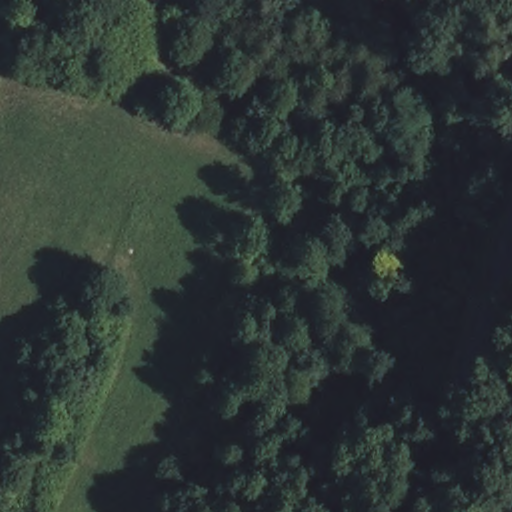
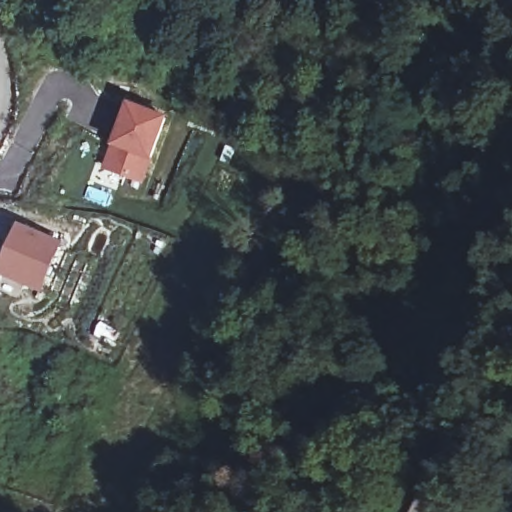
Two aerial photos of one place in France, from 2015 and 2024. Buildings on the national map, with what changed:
new [(164,119),(141,182),(106,170),(129,107),(164,119)]
new [(19,223),(62,241),(40,292),(0,275),(0,262),(19,223)]

